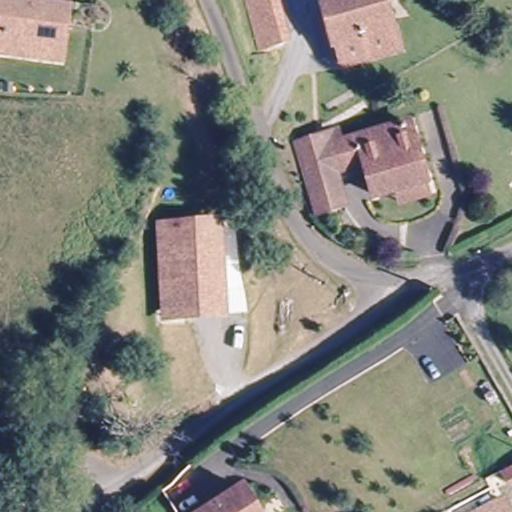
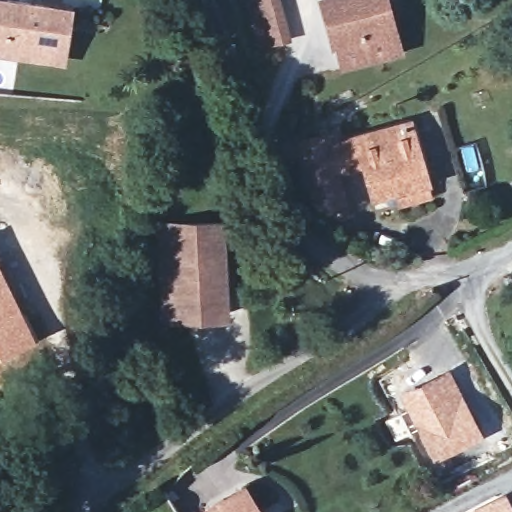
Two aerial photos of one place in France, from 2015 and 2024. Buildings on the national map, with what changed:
unchanged [(262,48),(250,0),(275,0),(285,42),(262,48)]
unchanged [(343,65),(336,47),(333,48),(320,3),(330,0),(381,0),(397,47),(343,65)]
unchanged [(0,53),(0,2),(68,13),(66,31),(61,62),(26,57),(0,53)]
unchanged [(385,201),(380,183),(369,186),(361,154),(335,159),(343,201),(315,207),(302,143),(315,133),(339,126),(341,133),(392,120),(407,177),(412,194),(385,201)]
unchanged [(224,225),(227,318),(179,319),(176,226),(224,225)]
unchanged [(167,320),(164,226),(176,226),(179,319),(167,320)]
new [(0,356),(0,264),(36,337),(0,356)]
new [(484,436),(433,461),(397,394),(448,369),(484,436)]
unchanged [(509,495),(500,479),(512,473),(512,494),(509,495)]
unchanged [(248,485),(262,512),(201,512),(199,510),(248,485)]
unchanged [(505,512),(485,512),(500,504),(505,512)]

